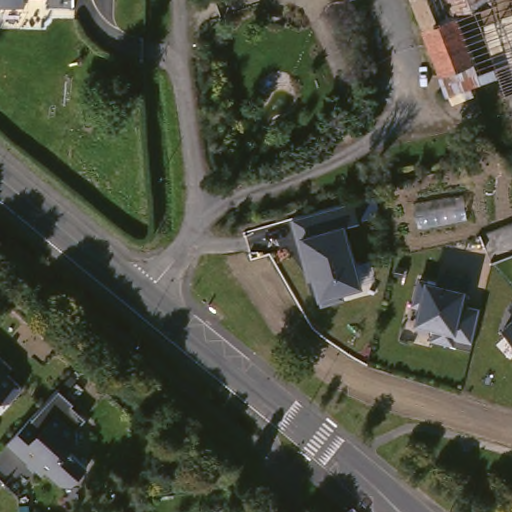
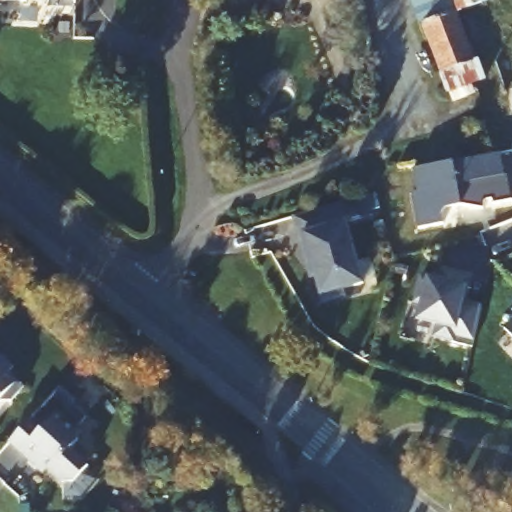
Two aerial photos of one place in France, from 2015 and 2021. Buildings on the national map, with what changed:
unchanged [(452,88),(420,0),(458,0),(484,65),(488,75),(452,88)]
new [(491,156),(497,179),(502,178),(506,199),(488,204),(487,199),(478,200),(476,206),(460,204),(438,205),(433,212),(435,224),(413,230),(406,195),(413,193),(408,170),(491,156)]
unchanged [(303,235),(344,226),(360,285),(318,296),(303,235)]
unchanged [(432,339),(434,326),(415,322),(417,307),(409,304),(415,278),(425,279),(439,282),(441,271),(471,277),(467,287),(464,302),(480,307),(471,348),(432,339)]
unchanged [(512,304),(512,310),(509,307),(512,304)]
unchanged [(512,320),(512,337),(503,329),(512,320)]
unchanged [(21,362),(16,368),(32,382),(19,396),(8,397),(0,405),(0,342),(21,362)]
unchanged [(43,409),(69,382),(70,379),(84,392),(82,394),(96,407),(86,418),(88,420),(89,431),(78,442),(97,459),(81,476),(70,477),(51,459),(46,464),(39,458),(41,457),(18,436),(43,409)]

